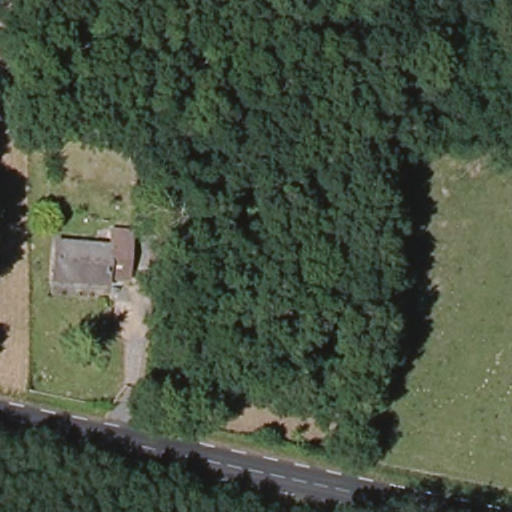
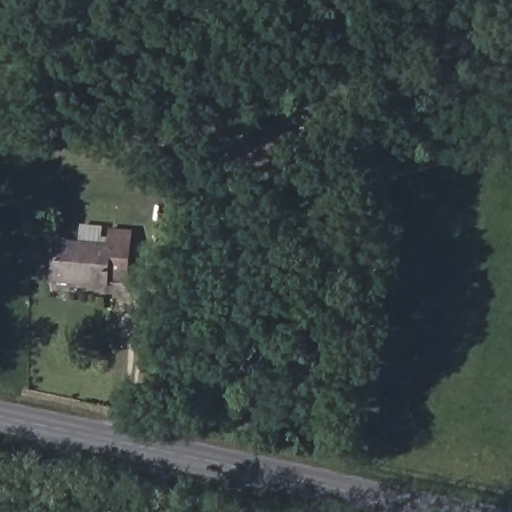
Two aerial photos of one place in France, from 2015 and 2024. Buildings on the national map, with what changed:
unchanged [(129,263),(110,262),(107,282),(51,277),(54,239),(112,242),(114,225),(133,227),(129,263)]

